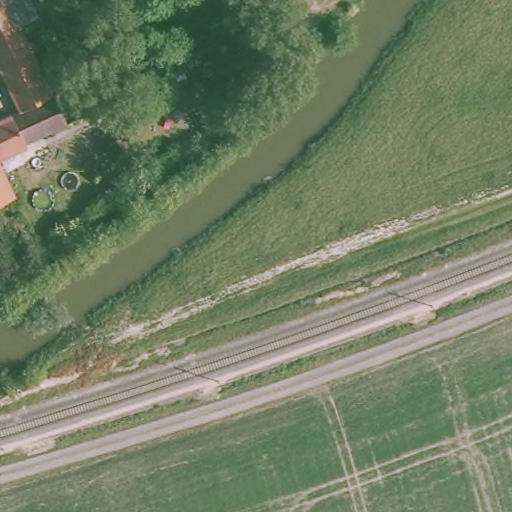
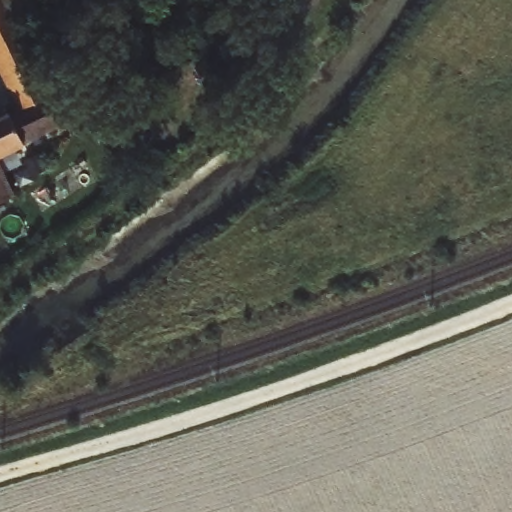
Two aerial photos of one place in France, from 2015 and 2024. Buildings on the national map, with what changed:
unchanged [(0,156),(0,120),(21,110),(0,65),(0,0),(31,0),(34,7),(38,17),(20,27),(65,125),(35,140),(0,156)]
unchanged [(46,0),(50,0),(46,1),(46,0)]
unchanged [(12,199),(0,204),(0,171),(12,199)]

